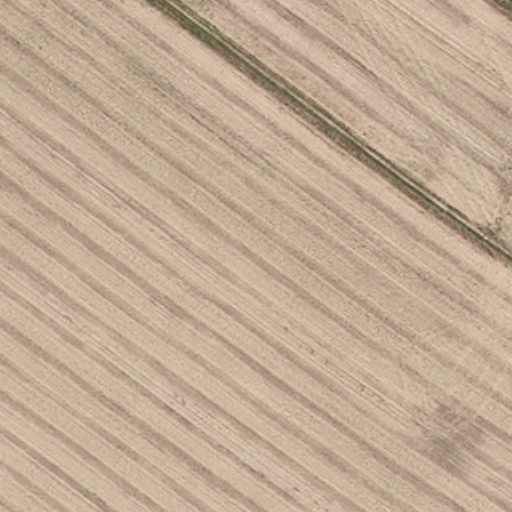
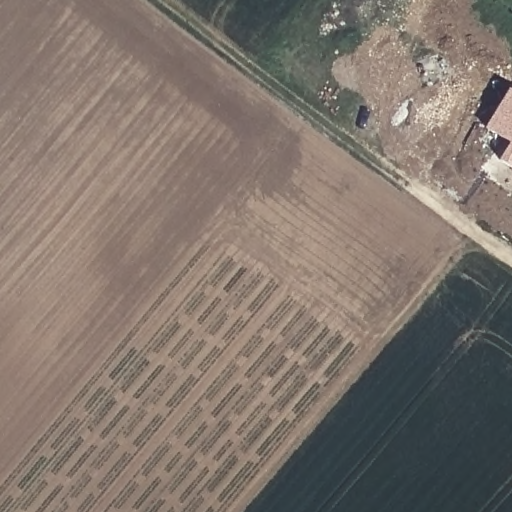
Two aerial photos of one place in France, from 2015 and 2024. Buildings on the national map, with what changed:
new [(505,140),(486,127),(511,87),(512,88),(512,169),(495,159),(505,140)]

